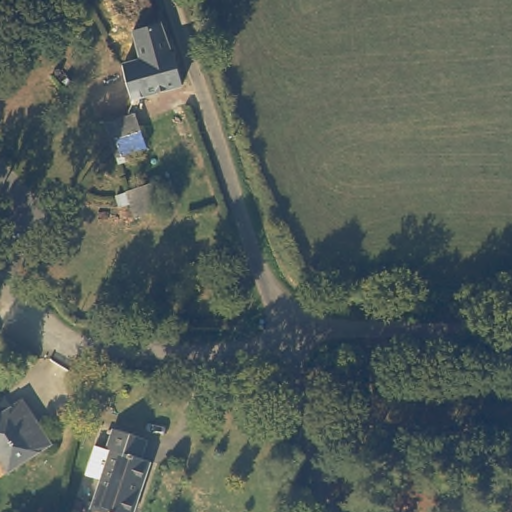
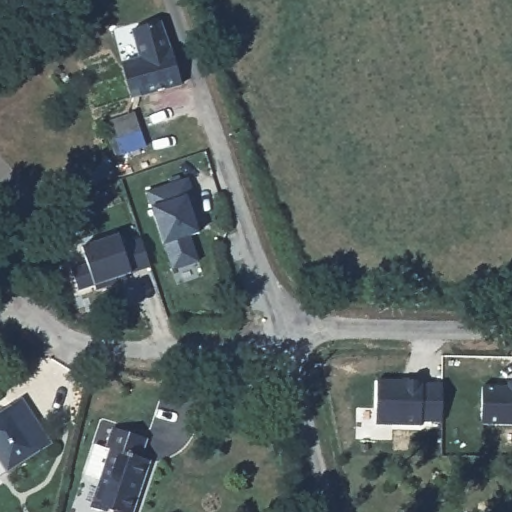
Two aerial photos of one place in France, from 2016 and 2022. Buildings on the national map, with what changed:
new [(132,29),(161,22),(171,52),(139,61),(132,29)]
unchanged [(173,55),(180,86),(132,98),(123,65),(171,52),(173,55)]
unchanged [(131,113),(142,147),(112,157),(110,148),(103,122),(125,115),(131,113)]
new [(146,192),(184,179),(188,195),(200,233),(190,236),(198,262),(172,271),(164,245),(151,208),(146,192)]
demolished [(154,181),(164,209),(135,217),(126,189),(154,181)]
new [(94,287),(94,285),(79,290),(72,269),(87,264),(82,247),(119,234),(122,247),(141,241),(149,268),(131,273),(131,275),(94,287)]
new [(376,425),(378,381),(423,382),(422,385),(442,384),(440,423),(421,423),(421,427),(376,425)]
new [(482,424),(484,386),(507,387),(507,381),(512,381),(512,425),(482,424)]
unchanged [(31,409),(53,444),(15,467),(6,472),(0,462),(0,410),(22,395),(31,409)]
unchanged [(141,457),(147,459),(130,512),(106,512),(89,506),(98,479),(81,473),(91,443),(102,447),(110,427),(147,439),(141,457)]

